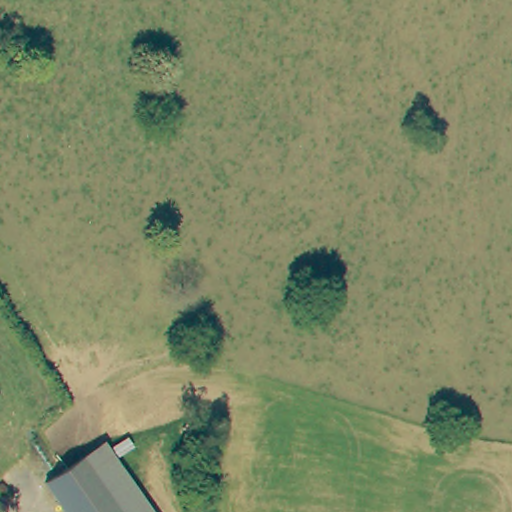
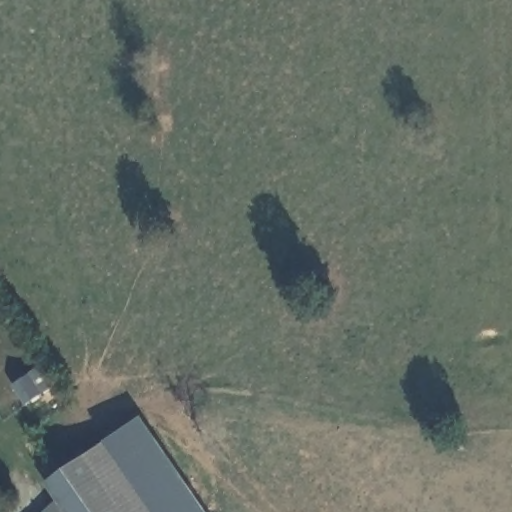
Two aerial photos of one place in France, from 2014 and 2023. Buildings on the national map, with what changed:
new [(135,448),(127,437),(110,449),(105,442),(137,416),(204,512),(153,512),(116,459),(135,448)]
unchanged [(105,442),(110,449),(127,437),(135,448),(116,459),(153,512),(64,512),(44,483),(105,442)]

